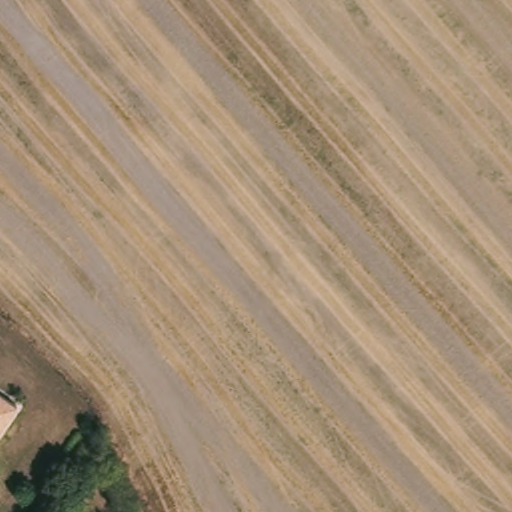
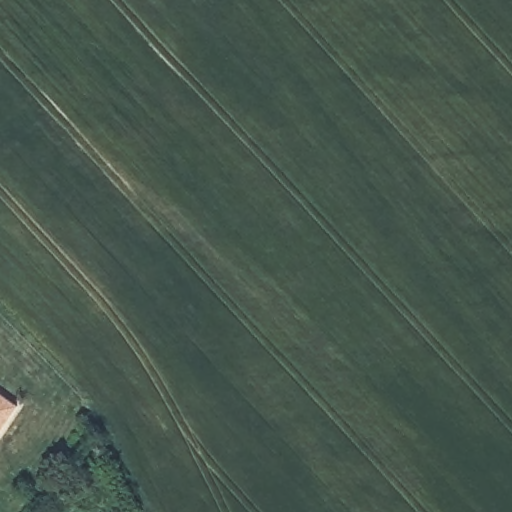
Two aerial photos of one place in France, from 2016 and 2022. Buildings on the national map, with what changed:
unchanged [(0,425),(0,397),(14,407),(0,425)]

